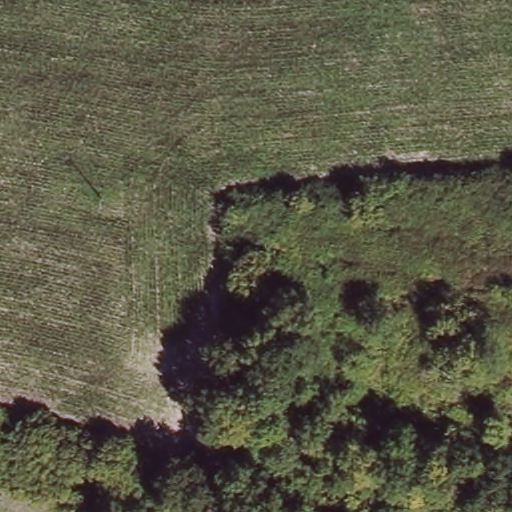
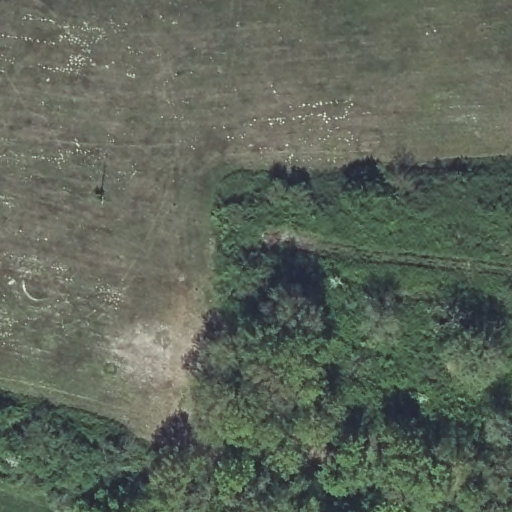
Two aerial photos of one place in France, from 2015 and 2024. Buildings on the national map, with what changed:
unchanged [(451,376),(437,377),(436,350),(451,349),(451,376)]

